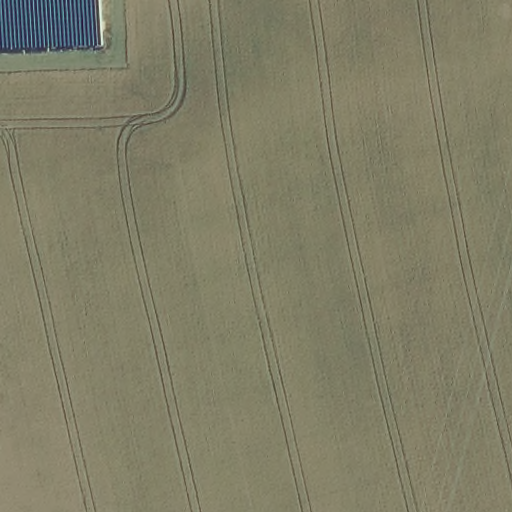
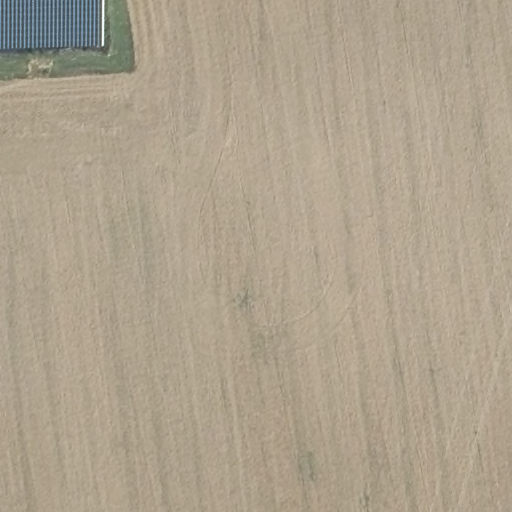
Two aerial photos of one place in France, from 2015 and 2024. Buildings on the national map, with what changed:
unchanged [(0,53),(0,0),(100,0),(100,49),(0,53)]

